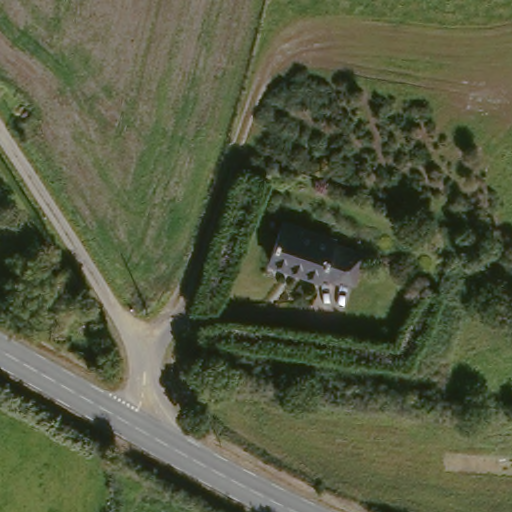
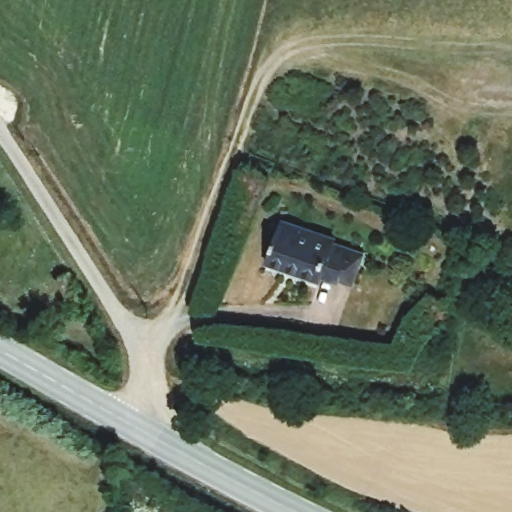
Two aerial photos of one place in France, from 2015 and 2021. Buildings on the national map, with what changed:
unchanged [(351,285),(336,280),(323,274),(321,279),(296,269),(293,265),(266,257),(278,222),(333,242),(332,246),(346,250),(361,255),(351,285)]
unchanged [(76,292),(72,294),(63,299),(52,280),(60,275),(66,272),(76,292)]

